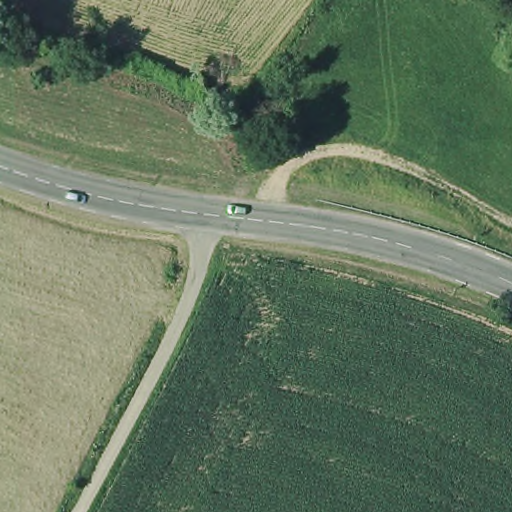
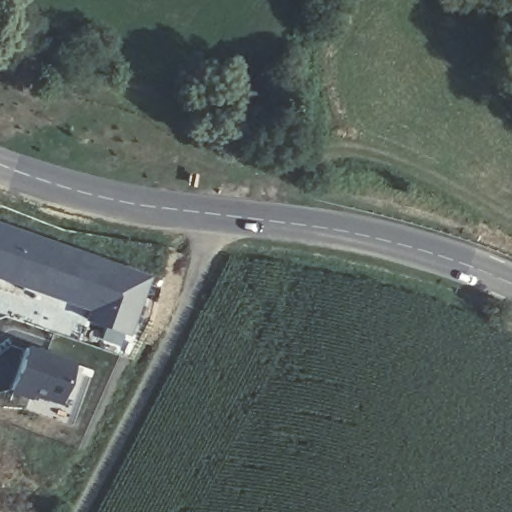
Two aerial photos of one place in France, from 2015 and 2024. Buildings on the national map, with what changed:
new [(150,273),(128,336),(125,335),(120,346),(101,339),(104,327),(82,318),(84,313),(48,296),(0,279),(0,220),(150,273)]
new [(76,360),(55,412),(0,390),(0,389),(19,339),(76,360)]

